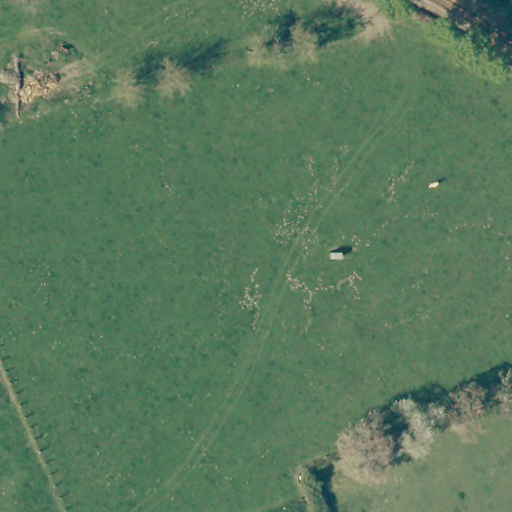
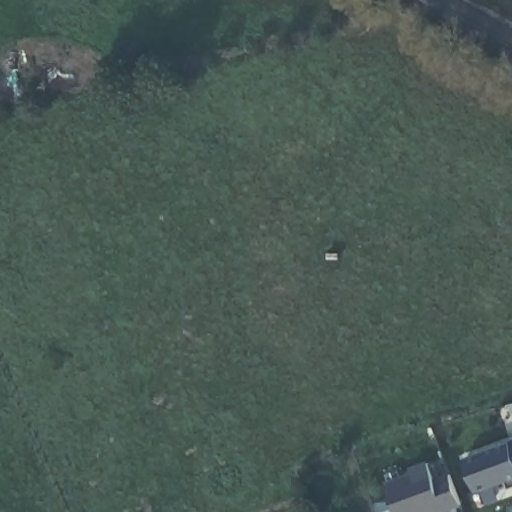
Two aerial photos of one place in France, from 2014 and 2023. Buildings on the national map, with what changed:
new [(509,482),(479,492),(464,459),(511,441),(512,441),(512,487),(511,488),(509,482)]
new [(433,477),(450,472),(462,507),(446,512),(446,508),(436,512),(398,512),(386,481),(413,474),(411,467),(428,461),(433,477)]

